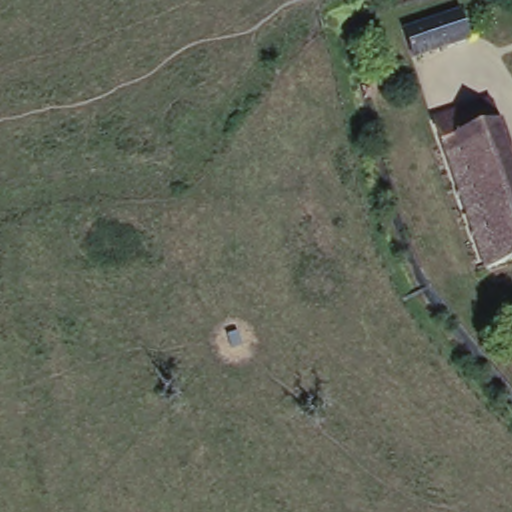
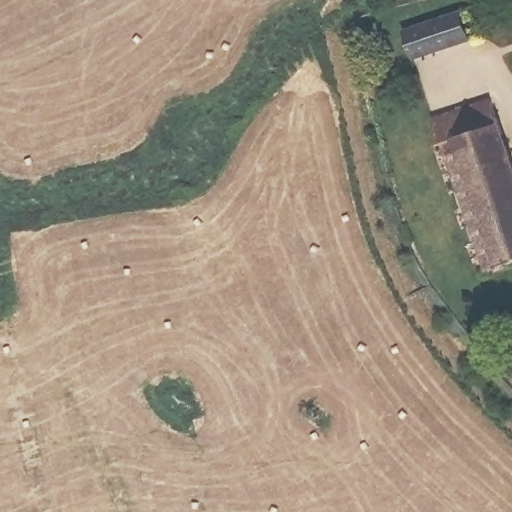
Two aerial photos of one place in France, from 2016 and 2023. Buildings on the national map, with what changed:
unchanged [(461,7),(472,33),(416,55),(408,27),(461,7)]
unchanged [(512,167),(512,261),(488,270),(430,112),(485,93),(512,167)]

